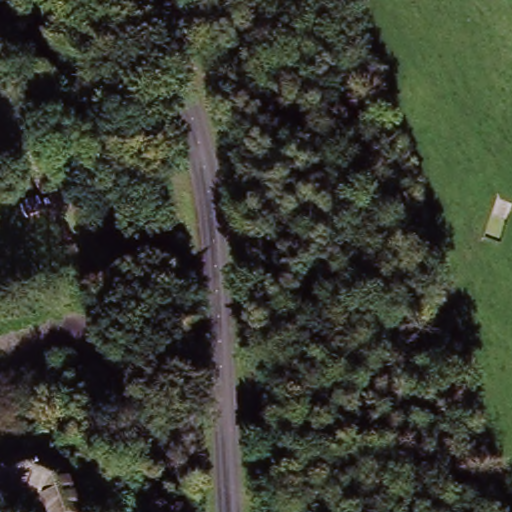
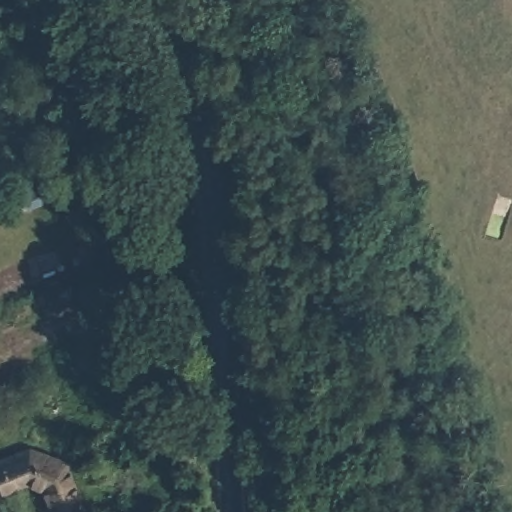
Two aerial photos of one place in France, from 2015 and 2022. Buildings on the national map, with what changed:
unchanged [(33,445),(66,462),(83,505),(66,512),(60,512),(49,483),(33,477),(0,488),(0,456),(33,445)]

